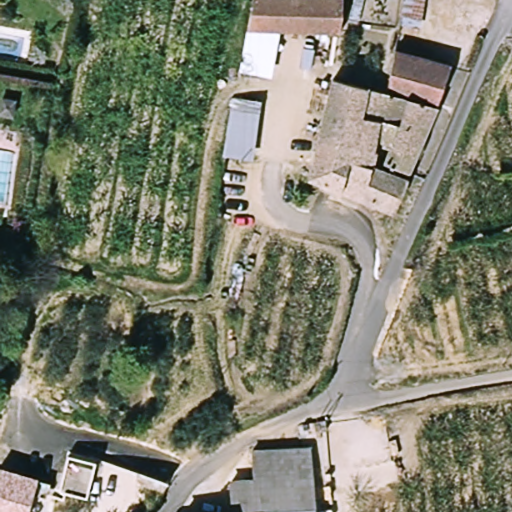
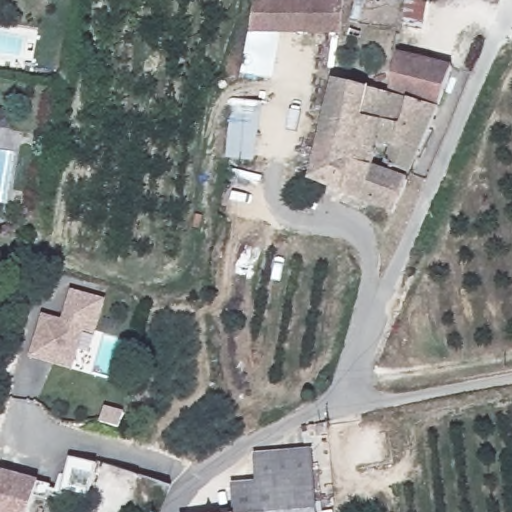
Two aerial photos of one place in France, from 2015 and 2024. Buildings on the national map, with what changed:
unchanged [(272,0),(347,6),(343,40),(252,31),(258,0),(272,0)]
new [(272,79),(240,74),(247,32),(252,31),(280,34),(272,79)]
unchanged [(379,164),(368,91),(387,96),(398,59),(452,76),(437,114),(412,175),(379,164)]
unchanged [(308,180),(334,81),(368,91),(379,164),(375,175),(407,188),(394,222),(308,180)]
unchanged [(255,161),(228,161),(235,101),(265,104),(255,161)]
new [(105,299),(94,335),(83,332),(72,370),(27,358),(38,313),(59,319),(68,289),(105,299)]
unchanged [(77,445),(102,452),(96,473),(91,503),(63,497),(77,445)]
unchanged [(237,487),(259,486),(260,457),(308,457),(316,457),(317,512),(237,512),(237,487)]
unchanged [(0,488),(7,471),(40,481),(33,512),(0,512),(0,488)]

